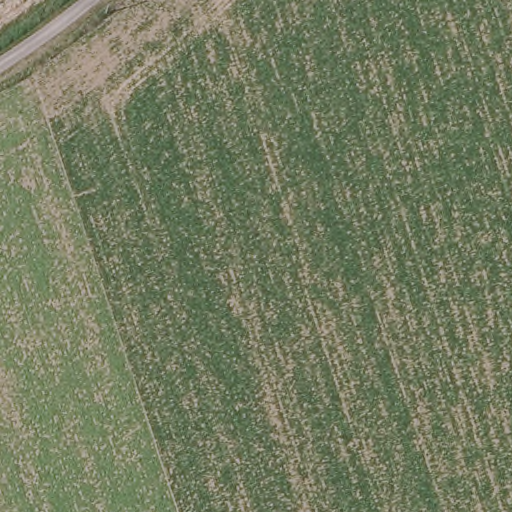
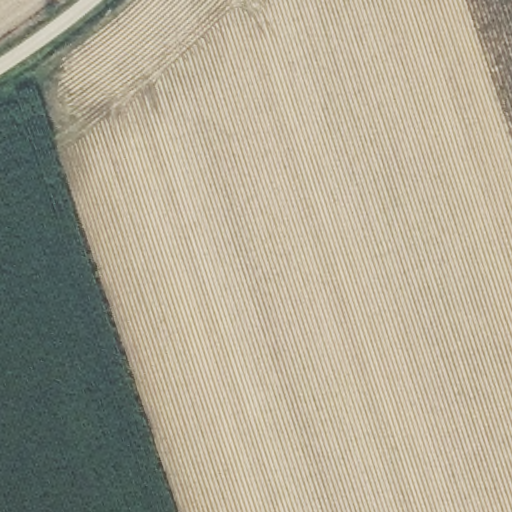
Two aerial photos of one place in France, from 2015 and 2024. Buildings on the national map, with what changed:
[]

